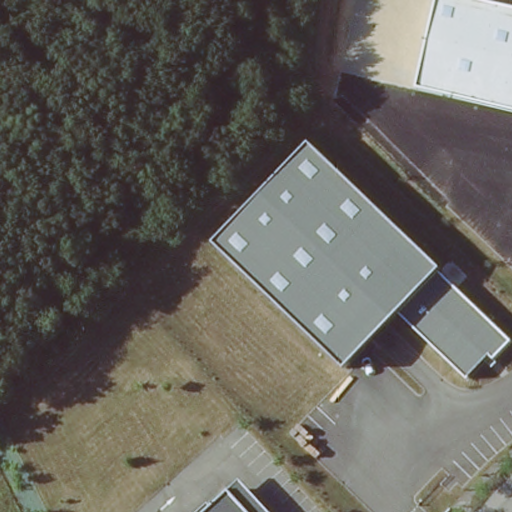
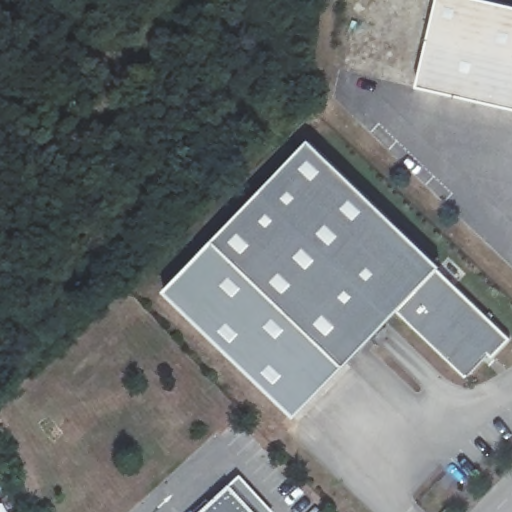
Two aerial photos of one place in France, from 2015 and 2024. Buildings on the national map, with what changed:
unchanged [(418,88),(438,0),(479,0),(512,8),(512,109),(418,88)]
unchanged [(308,141),(440,267),(509,338),(493,359),(487,353),(466,377),(401,308),(345,367),(214,241),(308,141)]
new [(296,417),(165,292),(214,241),(345,367),(296,417)]
unchanged [(235,495),(248,512),(214,512),(235,495)]

